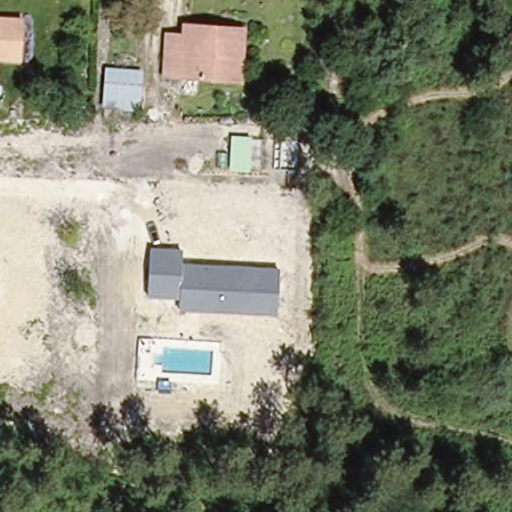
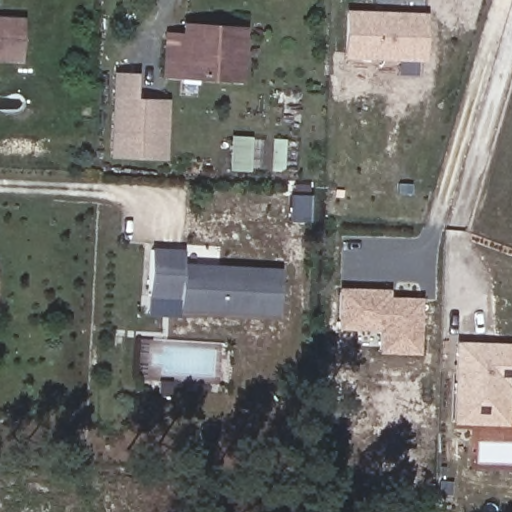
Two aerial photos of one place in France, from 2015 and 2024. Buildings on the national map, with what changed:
new [(346,59),(348,10),(424,12),(423,24),(428,24),(426,62),(346,59)]
unchanged [(22,60),(0,57),(0,19),(24,22),(22,60)]
unchanged [(242,84),(166,79),(166,39),(184,40),(184,28),(225,31),(242,32),(242,84)]
demolished [(143,112),(104,109),(107,67),(143,71),(143,112)]
new [(169,100),(166,161),(110,159),(114,72),(138,74),(136,99),(169,100)]
new [(251,172),(230,172),(231,137),(252,137),(251,172)]
new [(289,195),(310,195),(312,222),(290,222),(289,195)]
unchanged [(277,317),(179,313),(179,300),(148,298),(151,247),(181,249),(180,262),(279,267),(277,317)]
new [(392,297),(421,299),(420,355),(381,353),(381,333),(340,330),(339,289),(392,290),(392,297)]
new [(487,426),(454,425),(457,342),(512,344),(512,389),(510,388),(504,422),(487,426)]

